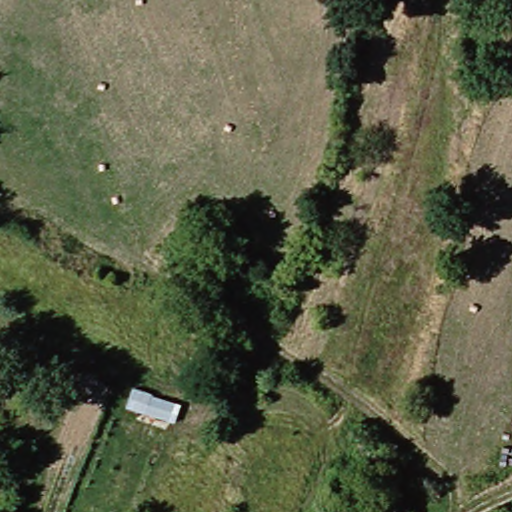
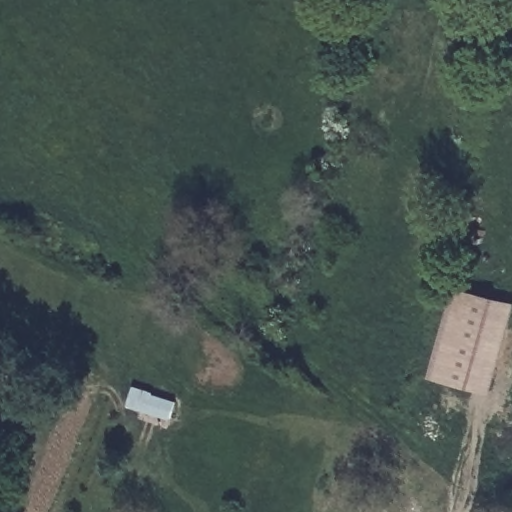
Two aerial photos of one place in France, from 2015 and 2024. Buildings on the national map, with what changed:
new [(452,288),(511,305),(486,395),(426,379),(452,288)]

